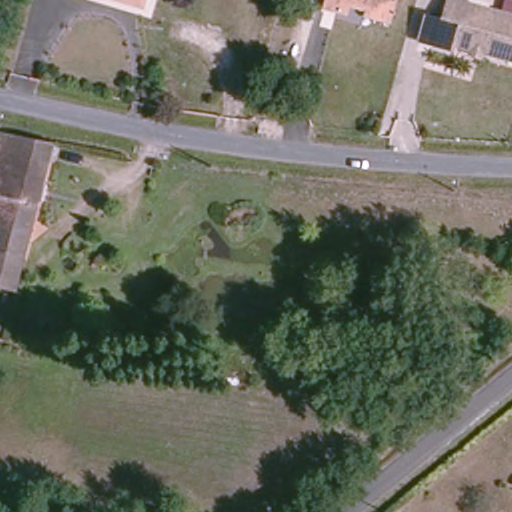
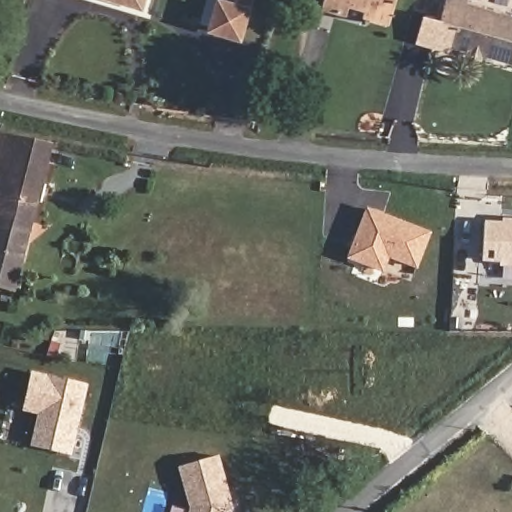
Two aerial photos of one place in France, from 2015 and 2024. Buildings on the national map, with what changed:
unchanged [(121,0),(141,0),(139,6),(121,0)]
new [(241,39),(205,28),(213,0),(252,0),(251,5),(241,39)]
unchanged [(365,9),(343,1),(340,11),(323,5),(325,0),(398,0),(391,19),(388,28),(362,19),(365,9)]
unchanged [(475,52),(455,47),(454,53),(437,49),(450,1),(512,18),(512,61),(486,55),(485,60),(473,57),(475,52)]
unchanged [(0,151),(0,138),(2,130),(54,146),(49,165),(0,151)]
unchanged [(10,295),(0,292),(0,151),(49,165),(10,295)]
new [(384,272),(347,258),(366,206),(432,232),(418,270),(388,258),(384,272)]
new [(500,262),(482,261),(484,217),(512,218),(512,267),(499,266),(500,262)]
new [(38,372),(91,385),(74,453),(36,444),(44,412),(29,408),(38,372)]
new [(221,455),(236,507),(235,512),(193,512),(194,506),(180,467),(221,455)]

